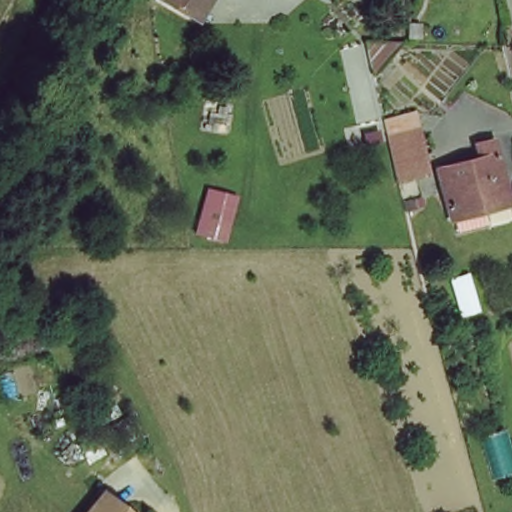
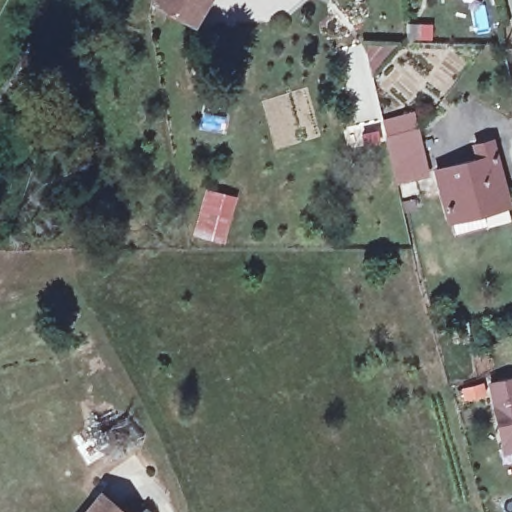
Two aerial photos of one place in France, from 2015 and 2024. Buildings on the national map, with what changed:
unchanged [(170,11),(167,10),(171,0),(222,0),(207,30),(170,11)]
unchanged [(382,50),(379,31),(390,32),(412,36),(385,67),(382,50)]
unchanged [(387,129),(417,125),(423,169),(394,175),(387,129)]
unchanged [(452,233),(449,217),(447,218),(443,197),(437,169),(480,160),(477,145),(494,141),(508,207),(480,212),(484,227),(452,233)]
unchanged [(237,203),(223,247),(194,237),(209,194),(237,203)]
new [(512,376),(512,451),(501,453),(486,381),(512,376)]
unchanged [(115,512),(96,512),(104,502),(115,512)]

